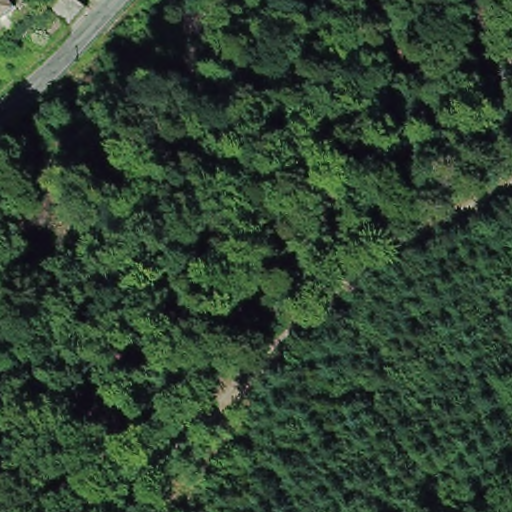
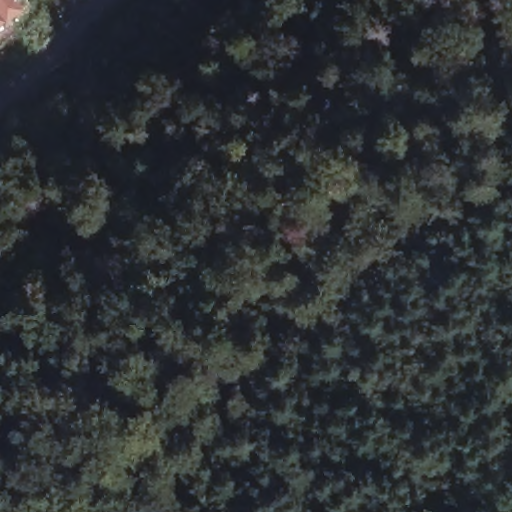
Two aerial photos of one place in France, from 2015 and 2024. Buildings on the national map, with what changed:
unchanged [(0,19),(0,0),(18,0),(21,4),(2,18),(0,19)]
unchanged [(65,26),(47,10),(57,0),(77,0),(83,6),(65,26)]

